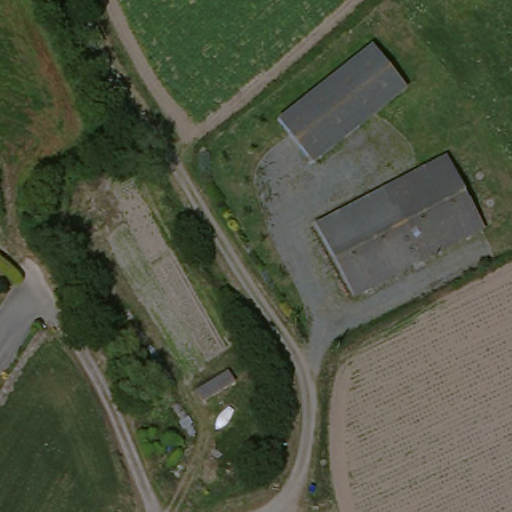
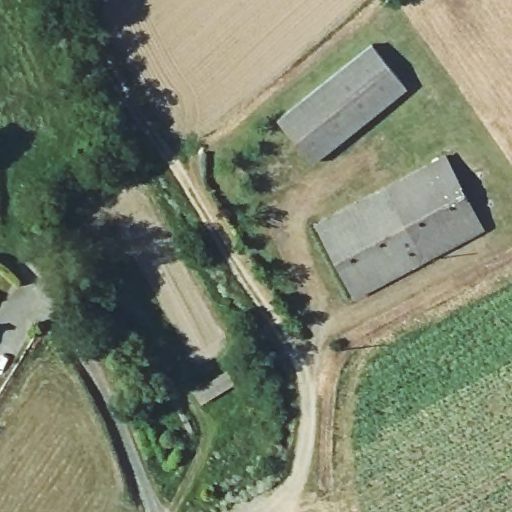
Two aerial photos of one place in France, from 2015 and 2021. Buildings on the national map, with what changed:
unchanged [(269,128),(369,49),(404,94),(304,172),(269,128)]
unchanged [(444,156),(477,229),(352,300),(315,228),(444,156)]
unchanged [(233,388),(203,405),(192,388),(222,372),(233,388)]

